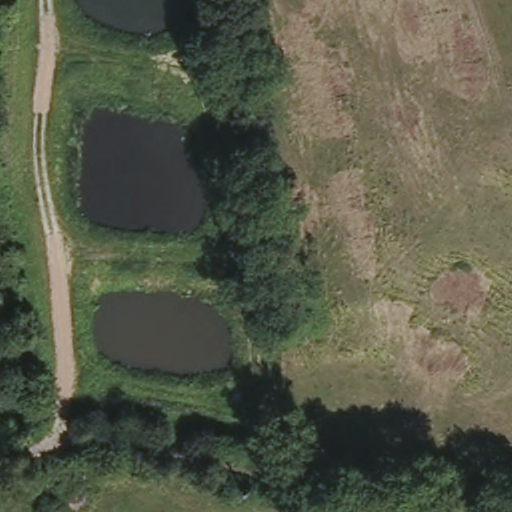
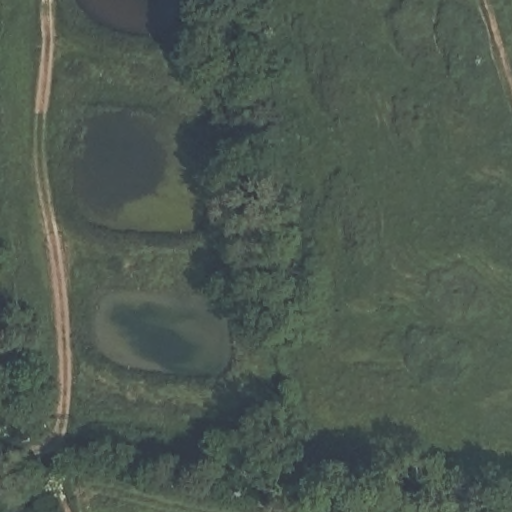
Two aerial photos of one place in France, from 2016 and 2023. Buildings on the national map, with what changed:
[]

